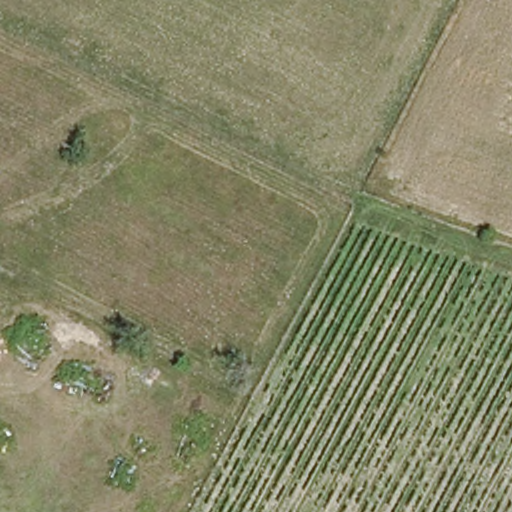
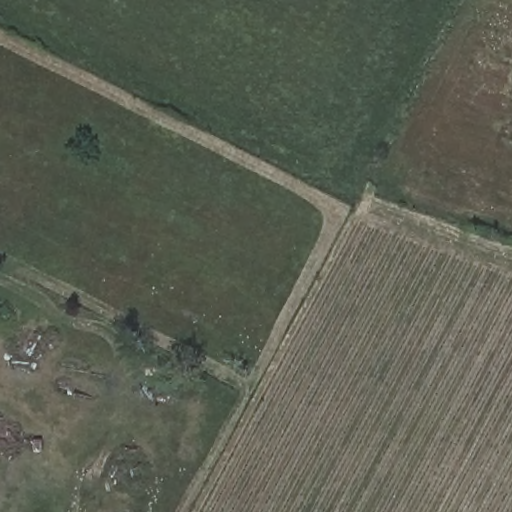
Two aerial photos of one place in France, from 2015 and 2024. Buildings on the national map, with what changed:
[]

